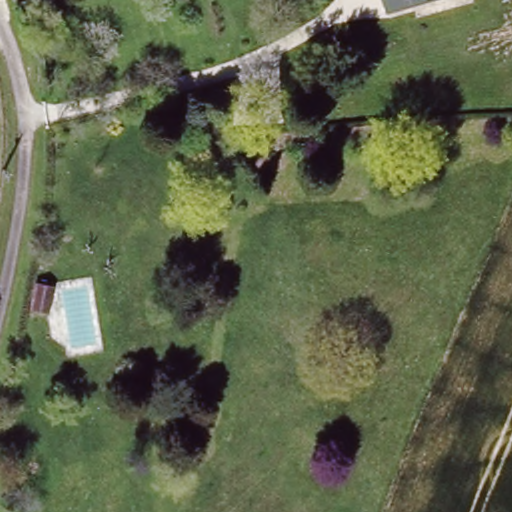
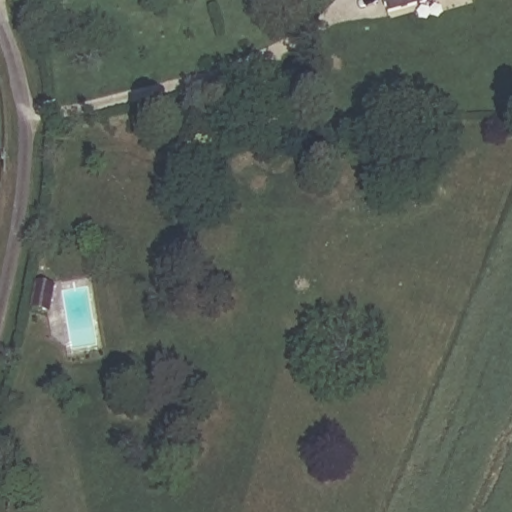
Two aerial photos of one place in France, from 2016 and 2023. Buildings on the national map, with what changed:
unchanged [(398,0),(434,0),(400,8),(398,0)]
unchanged [(51,286),(45,310),(29,305),(35,281),(51,286)]

